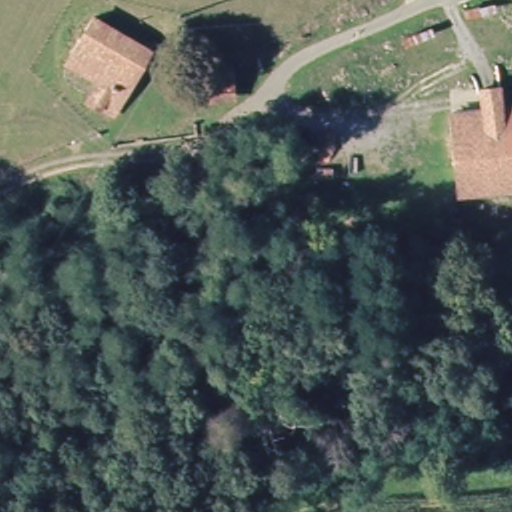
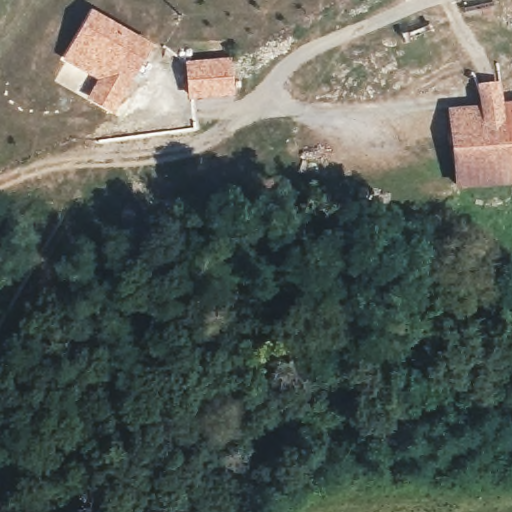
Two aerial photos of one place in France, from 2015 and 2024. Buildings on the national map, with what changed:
unchanged [(125,82),(131,86),(118,107),(107,102),(110,95),(100,92),(105,77),(65,60),(91,16),(151,42),(125,82)]
new [(231,57),(234,95),(187,99),(184,62),(231,57)]
demolished [(203,97),(163,103),(159,68),(199,62),(203,97)]
unchanged [(461,164),(453,117),(512,108),(512,186),(466,191),(461,164)]

